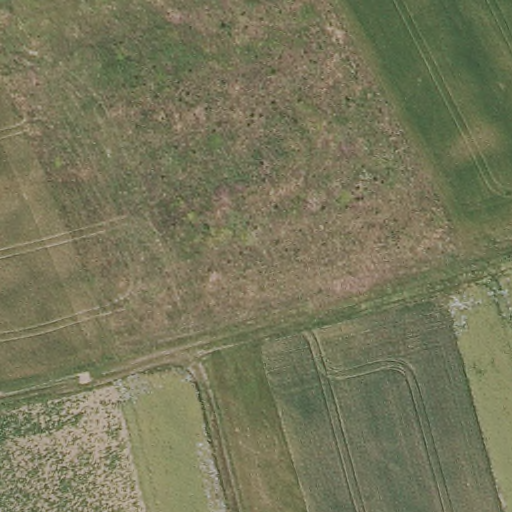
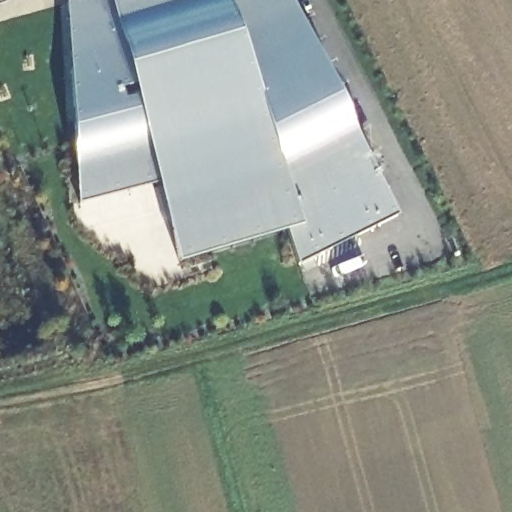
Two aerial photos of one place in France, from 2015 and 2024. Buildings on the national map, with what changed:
new [(398,213),(301,265),(291,229),(178,263),(158,187),(79,201),(71,0),(291,0),(398,213)]

